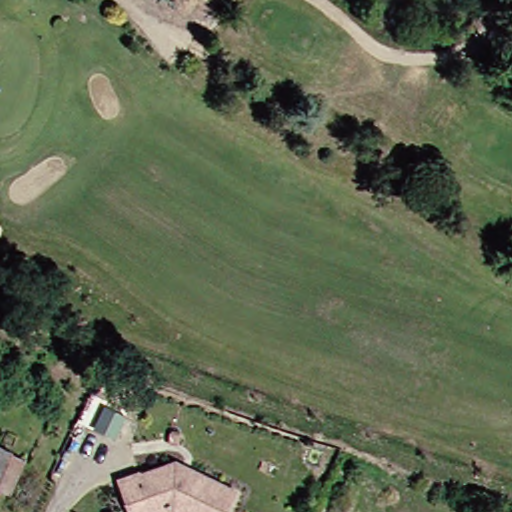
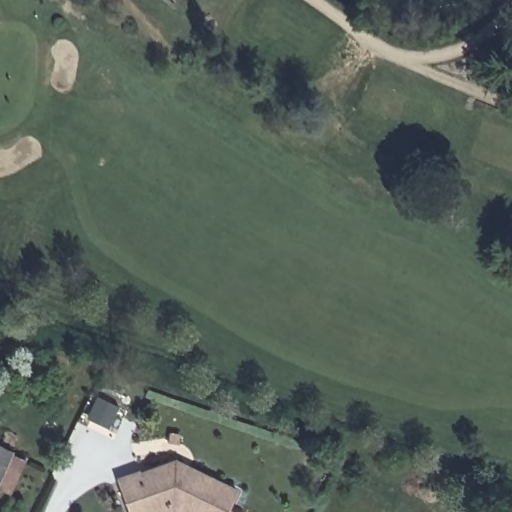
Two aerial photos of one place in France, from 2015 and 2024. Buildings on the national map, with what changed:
unchanged [(3,450),(15,455),(0,488),(0,449),(3,450)]
unchanged [(158,506),(155,498),(138,504),(140,512),(118,512),(106,478),(164,457),(226,487),(214,512),(176,512),(161,505),(158,506)]

